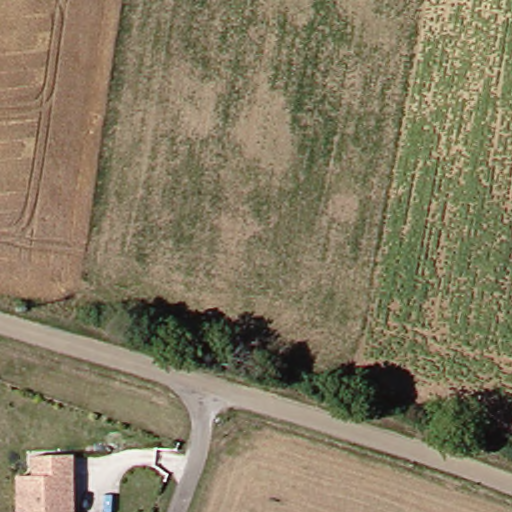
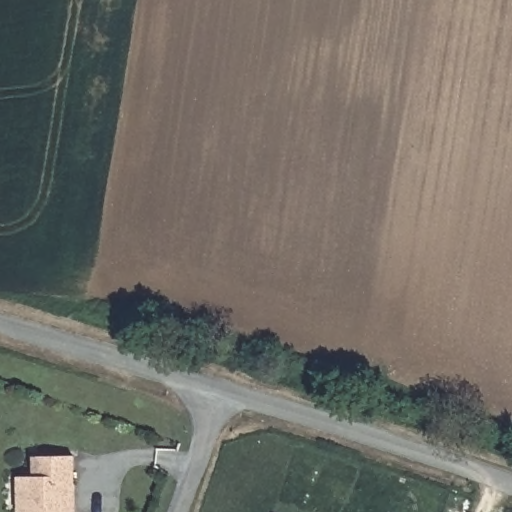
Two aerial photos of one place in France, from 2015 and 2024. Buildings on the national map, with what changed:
unchanged [(69,512),(27,512),(27,504),(18,504),(17,469),(33,469),(33,449),(75,448),(75,497),(75,507),(68,508),(69,512)]

